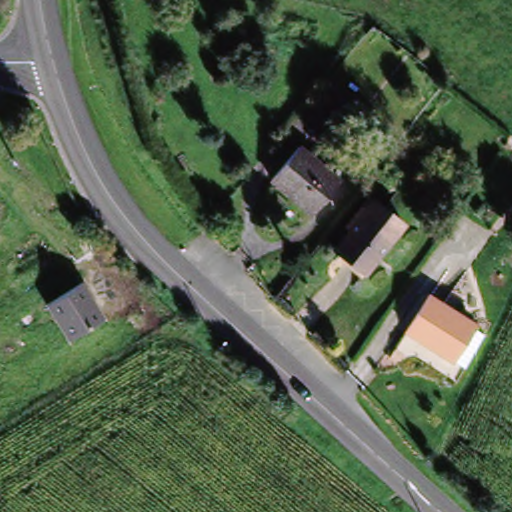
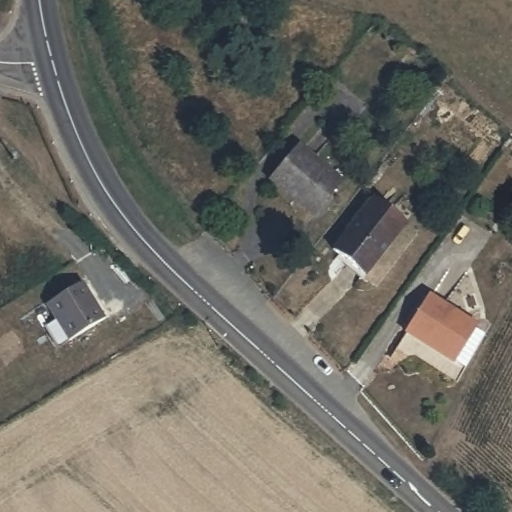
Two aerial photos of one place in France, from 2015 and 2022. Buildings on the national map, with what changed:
unchanged [(337,186),(308,217),(270,182),(298,151),(337,186)]
unchanged [(356,218),(367,202),(402,225),(391,242),(369,276),(335,250),(356,218)]
unchanged [(85,283),(108,321),(67,343),(45,305),(85,283)]
unchanged [(401,330),(424,297),(466,326),(478,334),(456,368),(444,359),(401,330)]

